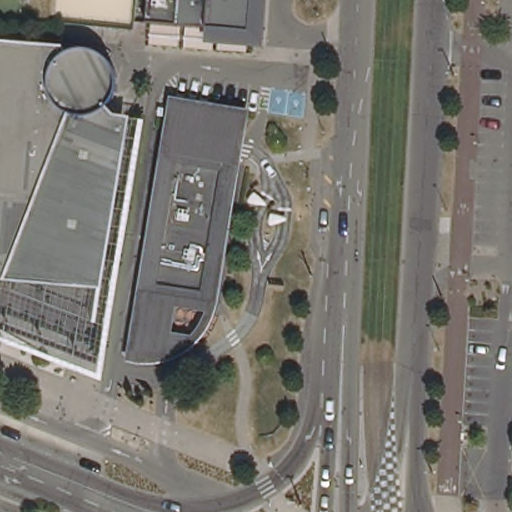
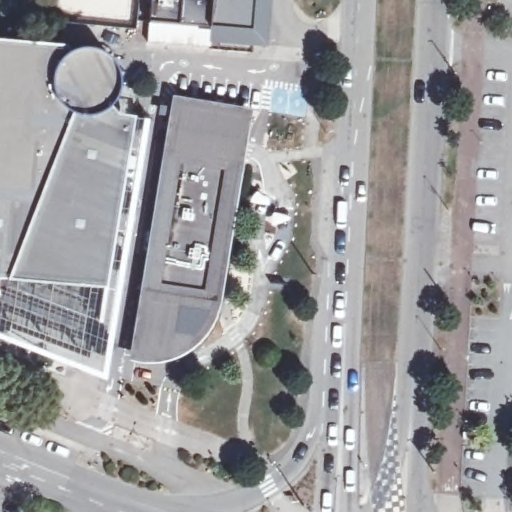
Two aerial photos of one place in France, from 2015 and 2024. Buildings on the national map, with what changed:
unchanged [(263,46),(210,41),(211,29),(147,22),(149,0),(268,0),(263,46)]
unchanged [(78,47),(97,50),(108,56),(115,65),(119,76),(119,90),(117,96),(112,104),(117,112),(137,116),(105,295),(10,285),(5,297),(0,297),(0,41),(72,48),(78,47)]
unchanged [(255,110),(219,312),(213,326),(208,336),(195,351),(180,360),(165,364),(149,365),(127,360),(173,95),(255,110)]

